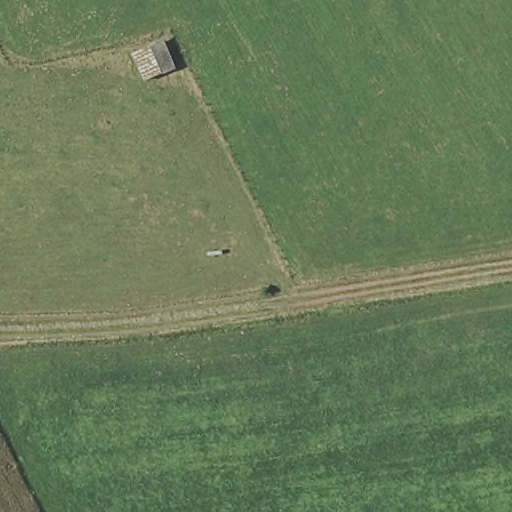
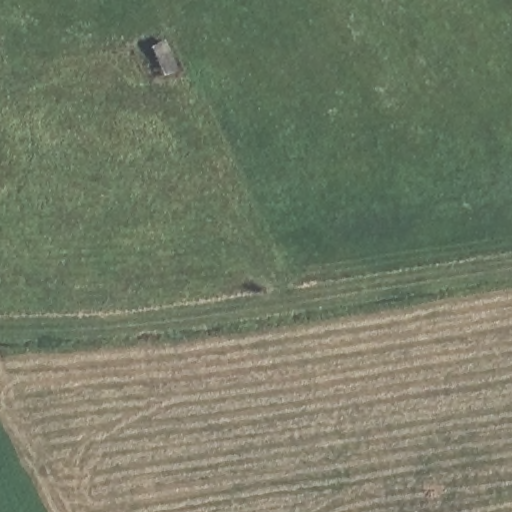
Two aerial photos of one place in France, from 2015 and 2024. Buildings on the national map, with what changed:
unchanged [(158,41),(170,71),(137,85),(123,57),(158,41)]

